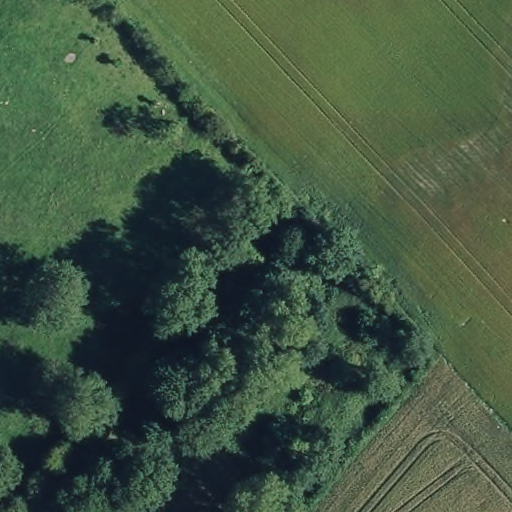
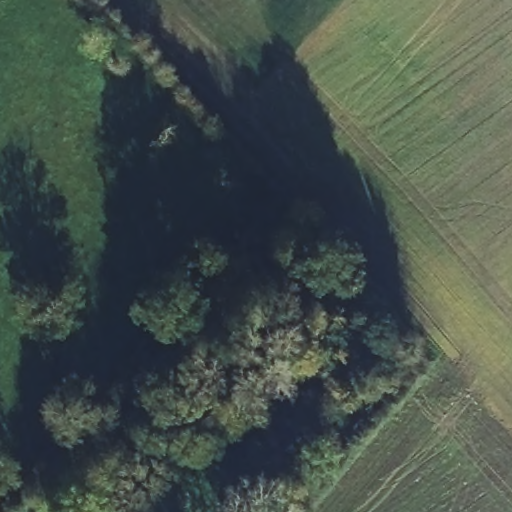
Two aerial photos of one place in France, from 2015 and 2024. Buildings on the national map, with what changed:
[]

